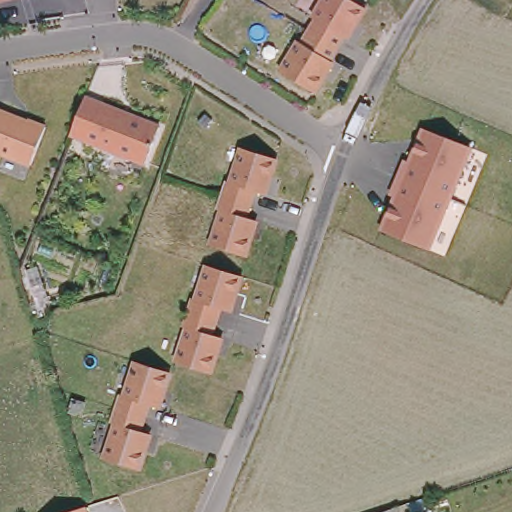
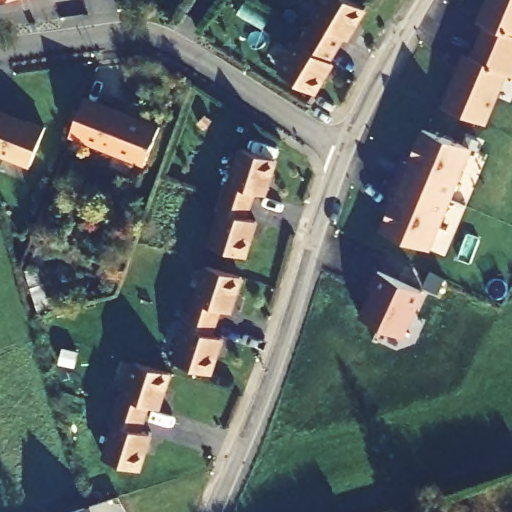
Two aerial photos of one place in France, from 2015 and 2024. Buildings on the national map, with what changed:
unchanged [(0,3),(0,0),(10,0),(0,3)]
unchanged [(312,11),(309,9),(314,0),(362,0),(344,30),(340,28),(333,40),(305,22),(312,11)]
new [(487,25),(484,24),(493,1),(491,0),(512,0),(512,54),(481,41),(487,25)]
unchanged [(333,40),(326,52),(329,54),(310,84),(276,62),(295,32),(298,35),(305,22),(333,40)]
new [(457,76),(461,77),(471,55),(475,56),(481,41),(512,54),(512,75),(508,73),(486,124),(445,107),(457,76)]
unchanged [(159,122),(144,160),(69,130),(84,93),(159,122)]
unchanged [(0,152),(0,110),(27,122),(27,121),(45,128),(29,165),(0,152)]
unchanged [(470,148),(429,251),(379,228),(392,195),(387,193),(403,157),(407,159),(420,127),(470,148)]
unchanged [(225,175),(229,176),(239,142),(274,152),(264,187),(254,185),(250,197),(222,190),(225,175)]
unchanged [(250,197),(246,211),(255,214),(245,250),(210,240),(220,205),(217,204),(222,190),(250,197)]
unchanged [(223,264),(242,270),(232,305),(222,302),(219,316),(190,307),(194,293),(197,294),(205,269),(207,260),(223,264)]
new [(377,290),(373,288),(381,270),(425,292),(405,337),(364,317),(377,290)]
unchanged [(219,316),(215,329),(225,332),(214,367),(179,357),(190,322),(186,322),(190,307),(219,316)]
unchanged [(125,391),(128,392),(139,357),(173,367),(162,403),(153,400),(149,413),(120,405),(125,391)]
unchanged [(149,413),(145,427),(155,430),(145,465),(110,455),(120,421),(117,420),(120,405),(149,413)]
unchanged [(387,512),(400,507),(402,512),(387,512)]

